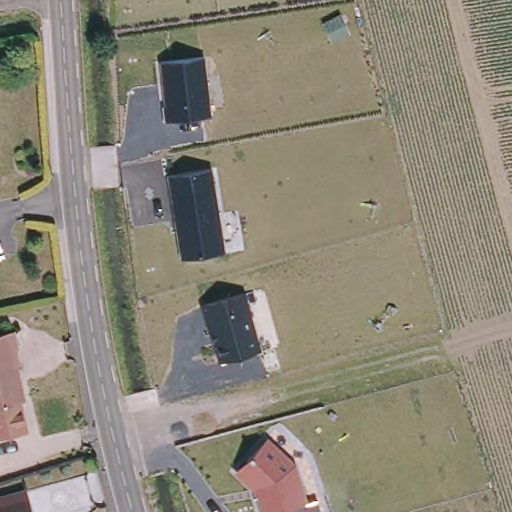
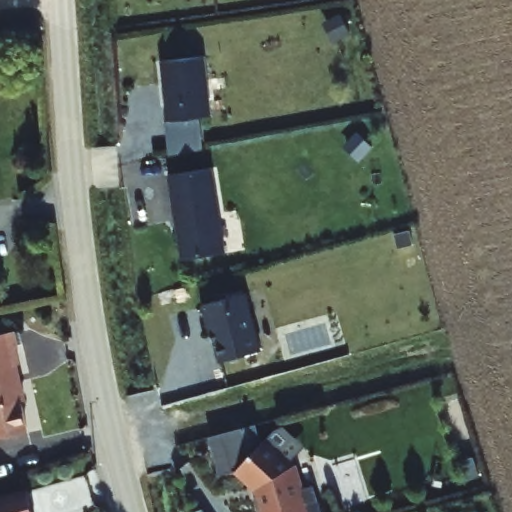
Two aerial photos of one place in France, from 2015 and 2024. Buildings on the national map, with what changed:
unchanged [(160,63),(205,59),(210,118),(166,123),(160,63)]
unchanged [(181,260),(168,177),(212,170),(225,254),(181,260)]
unchanged [(217,364),(201,306),(245,294),(261,352),(217,364)]
unchanged [(6,334),(10,351),(8,351),(11,367),(9,367),(17,403),(15,404),(22,433),(0,438),(0,335),(6,334)]
new [(218,474),(209,437),(256,424),(262,445),(239,470),(218,474)]
unchanged [(321,512),(257,512),(253,499),(256,498),(255,492),(235,474),(269,438),(296,466),(308,505),(318,501),(321,512)]
unchanged [(23,495),(29,512),(0,512),(0,501),(23,495)]
new [(201,510),(203,512),(194,512),(201,510)]

